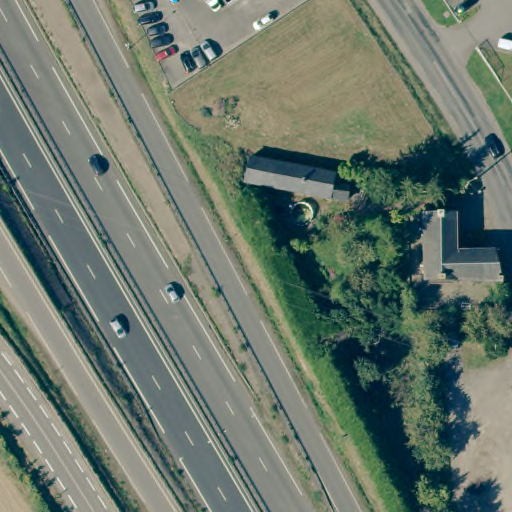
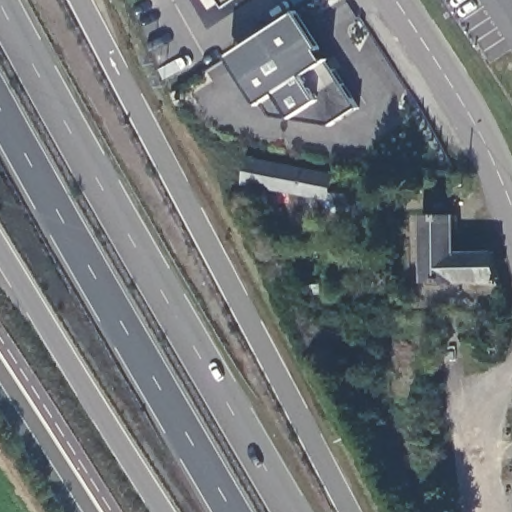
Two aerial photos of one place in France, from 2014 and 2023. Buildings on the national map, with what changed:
unchanged [(227,5),(223,0),(234,0),(227,5)]
new [(299,13),(321,47),(320,48),(328,62),(358,107),(332,124),(272,116),(262,103),(232,56),(299,13)]
unchanged [(230,179),(235,154),(321,168),(327,166),(333,168),(337,174),(337,180),(335,196),(230,179)]
unchanged [(409,275),(408,210),(443,210),(445,245),(481,244),(486,275),(409,275)]

